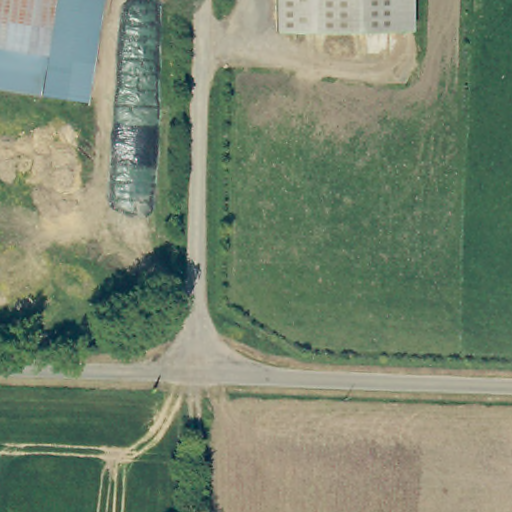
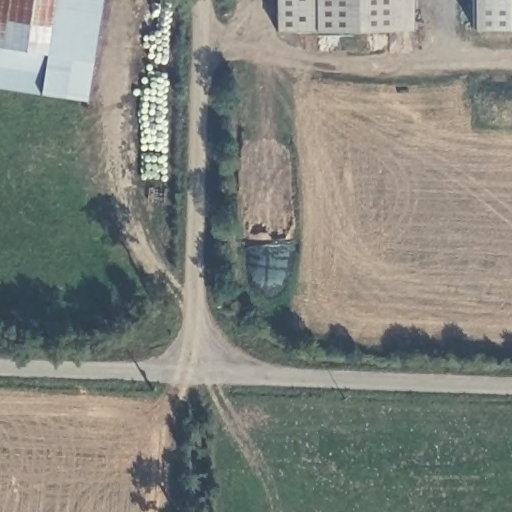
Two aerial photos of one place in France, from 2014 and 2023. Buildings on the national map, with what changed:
unchanged [(0,88),(0,0),(94,0),(77,100),(0,88)]
unchanged [(411,0),(412,28),(276,31),(276,0),(411,0)]
new [(512,0),(512,28),(472,29),(471,0),(512,0)]

